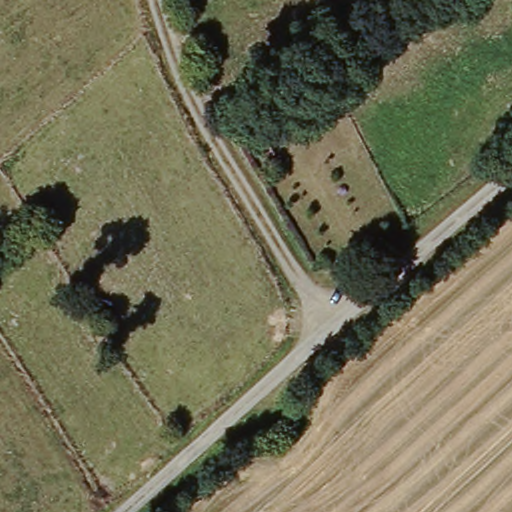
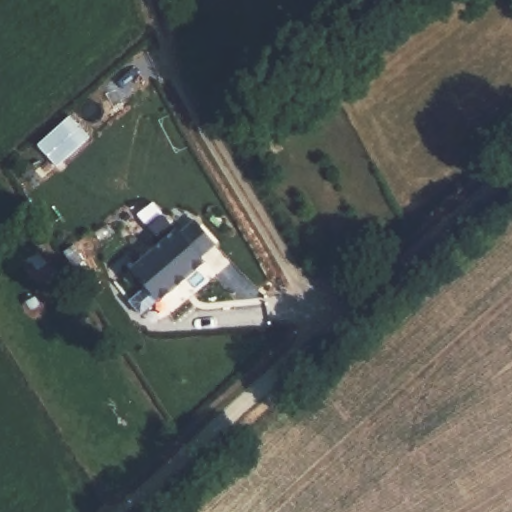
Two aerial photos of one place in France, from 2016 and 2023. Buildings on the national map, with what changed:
new [(177,229),(180,233),(194,222),(215,246),(202,256),(207,261),(162,302),(131,269),(177,229)]

